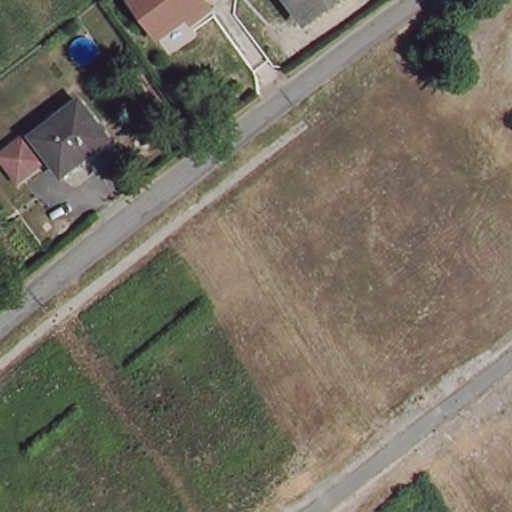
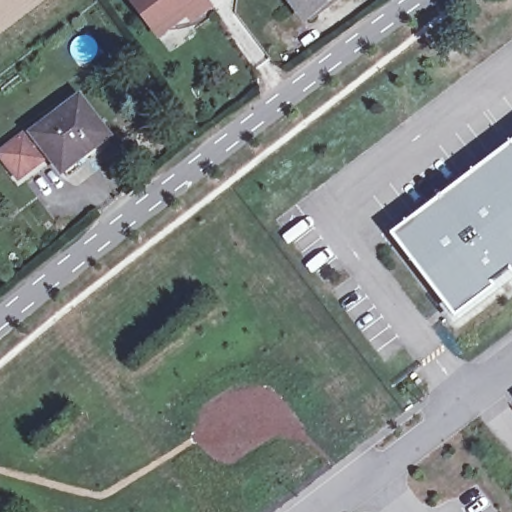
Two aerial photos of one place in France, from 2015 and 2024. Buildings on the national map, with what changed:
unchanged [(207,0),(215,11),(194,31),(185,23),(159,44),(127,2),(130,0),(207,0)]
unchanged [(291,0),(334,0),(307,21),(291,0)]
unchanged [(79,103),(109,140),(63,174),(47,152),(40,157),(44,161),(19,180),(0,155),(25,136),(29,141),(35,137),(79,103)]
new [(512,280),(497,291),(456,322),(392,238),(512,148),(512,280)]

